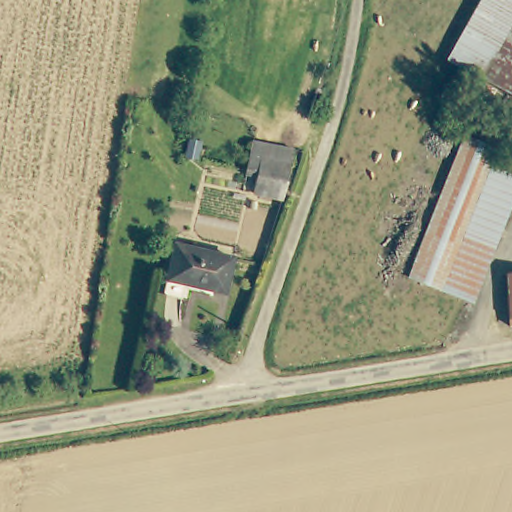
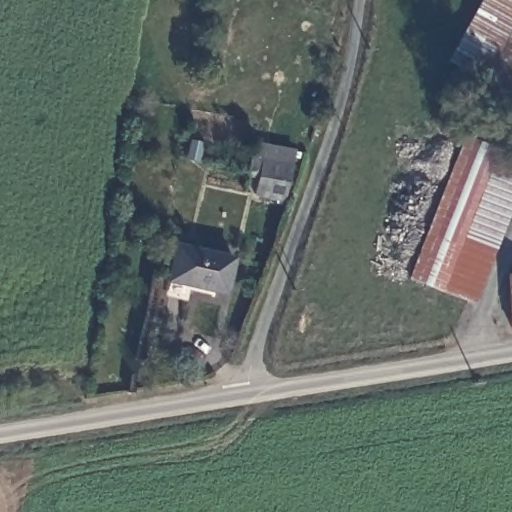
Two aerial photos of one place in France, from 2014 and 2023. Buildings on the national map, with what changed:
unchanged [(453,68),(489,0),(512,0),(512,31),(485,82),(483,85),(453,68)]
unchanged [(512,31),(512,96),(485,82),(512,31)]
unchanged [(411,275),(464,134),(499,145),(497,152),(446,288),(411,275)]
unchanged [(259,194),(265,171),(246,166),(252,142),(293,152),(287,176),(281,200),(259,194)]
unchanged [(512,202),(475,298),(446,288),(497,152),(512,157),(512,202)]
unchanged [(230,257),(222,294),(168,282),(175,246),(230,257)]
unchanged [(512,278),(512,303),(506,279),(512,278)]

